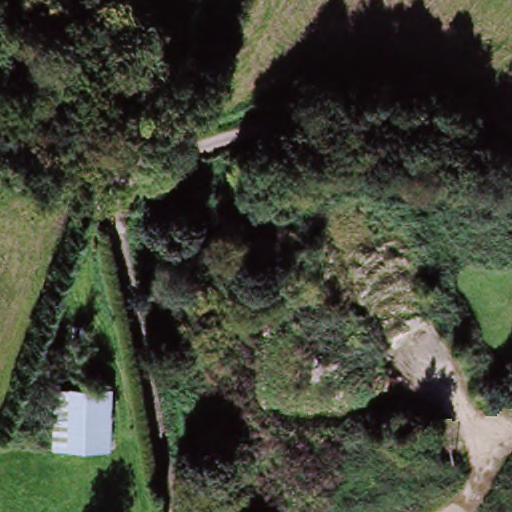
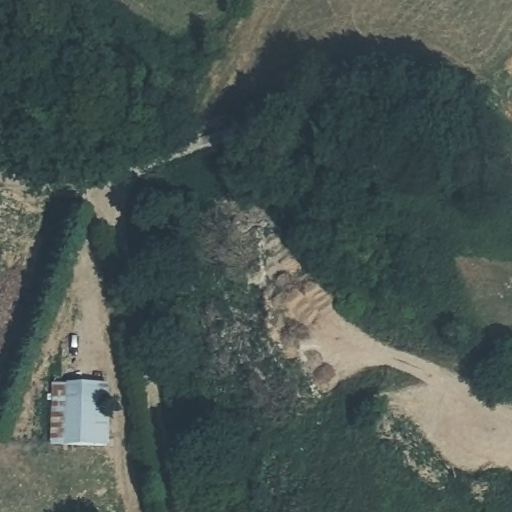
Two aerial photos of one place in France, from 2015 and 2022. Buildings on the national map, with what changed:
unchanged [(107,450),(66,447),(51,446),(55,386),(71,387),(112,390),(107,450)]

